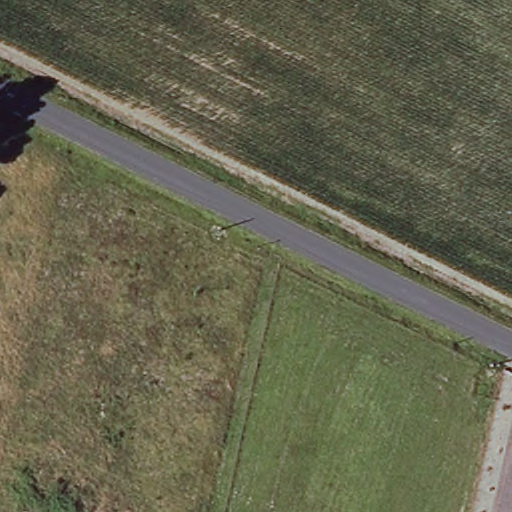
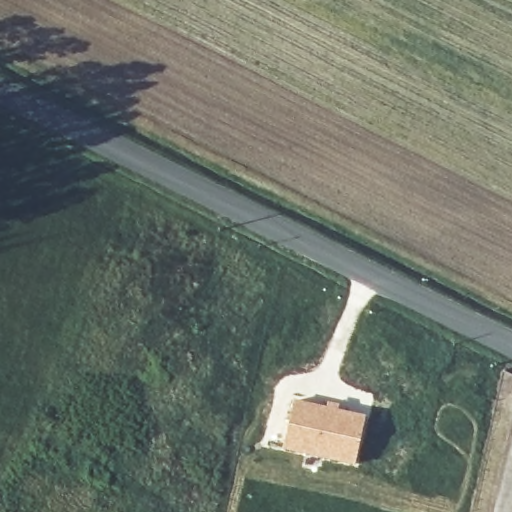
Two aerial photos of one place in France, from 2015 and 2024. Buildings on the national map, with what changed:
new [(294,398),(325,406),(327,401),(340,405),(339,408),(366,415),(354,466),(281,449),(294,398)]

